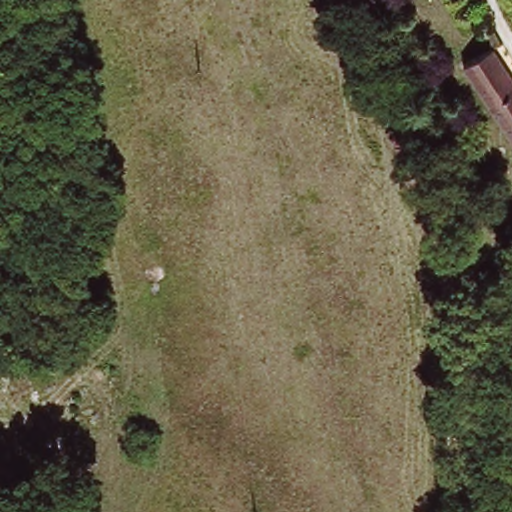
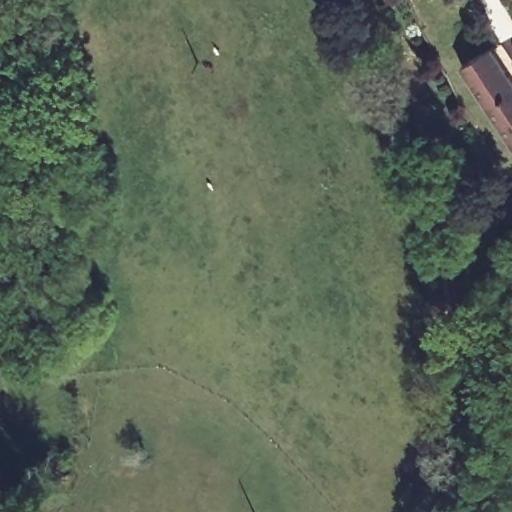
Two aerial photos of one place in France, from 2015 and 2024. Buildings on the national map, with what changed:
unchanged [(460,62),(485,46),(512,85),(512,142),(460,62)]

